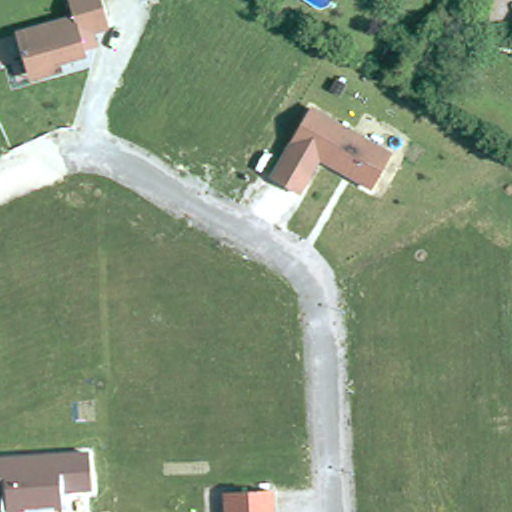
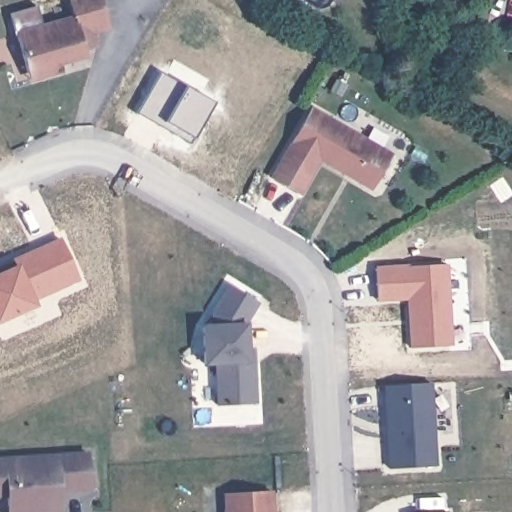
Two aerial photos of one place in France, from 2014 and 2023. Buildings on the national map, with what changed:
unchanged [(112,30),(96,35),(100,45),(89,47),(90,51),(64,60),(66,70),(31,78),(14,31),(73,11),(68,0),(102,0),(112,30)]
new [(160,71),(214,102),(190,144),(173,134),(176,129),(165,122),(162,127),(136,113),(160,71)]
unchanged [(395,153),(376,191),(320,162),(301,190),(269,175),(308,108),(395,153)]
new [(16,267),(13,261),(60,240),(78,280),(31,300),(34,305),(0,320),(0,274),(16,267)]
new [(407,264),(408,266),(448,263),(454,345),(410,348),(408,300),(378,301),(375,266),(407,264)]
new [(260,304),(247,325),(248,348),(255,347),(258,403),(219,406),(217,366),(204,367),(202,326),(206,325),(206,318),(228,283),(260,304)]
new [(438,465),(389,470),(384,386),(433,382),(438,465)]
unchanged [(61,495),(63,512),(6,512),(5,499),(0,499),(0,458),(88,452),(91,492),(61,495)]
unchanged [(228,512),(227,492),(276,491),(276,512),(228,512)]
new [(449,512),(436,512),(449,511),(449,512)]

